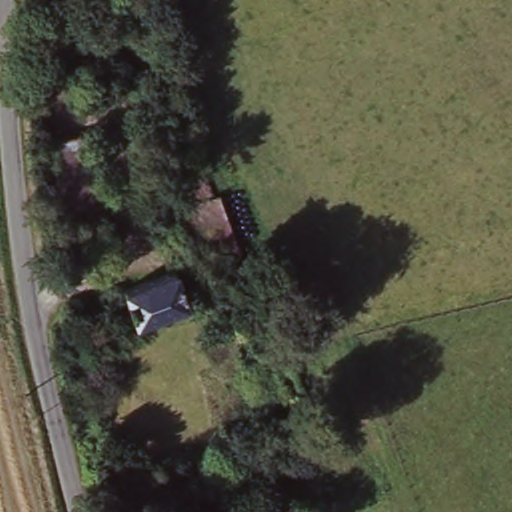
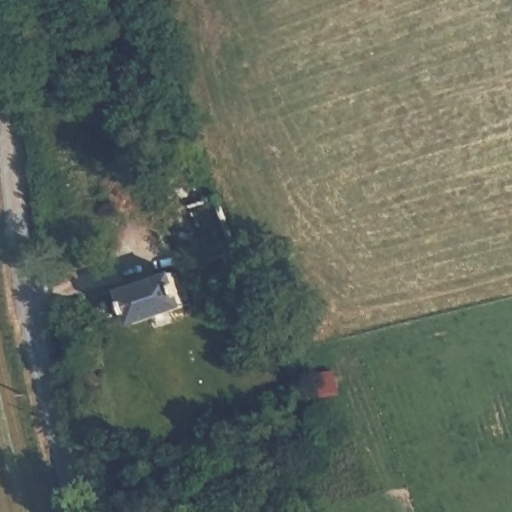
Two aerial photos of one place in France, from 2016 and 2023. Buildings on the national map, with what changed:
unchanged [(52,139),(93,134),(100,210),(59,214),(52,139)]
unchanged [(232,251),(188,267),(164,192),(208,177),(232,251)]
unchanged [(192,304),(140,321),(127,291),(182,271),(192,304)]
unchanged [(70,313),(101,304),(105,316),(74,324),(70,313)]

